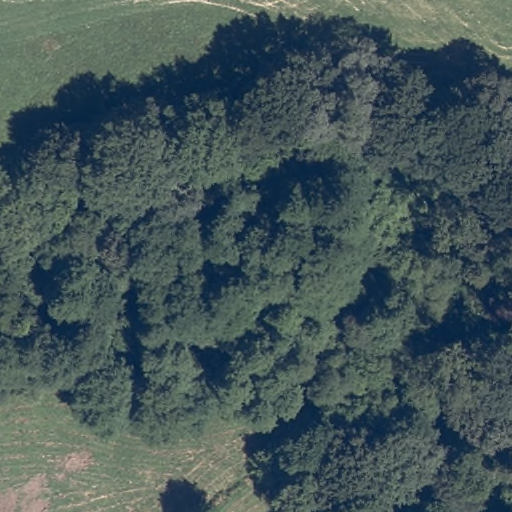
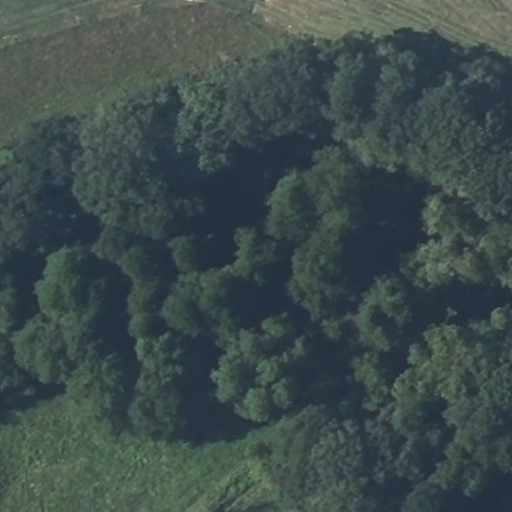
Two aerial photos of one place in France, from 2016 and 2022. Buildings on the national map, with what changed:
[]

